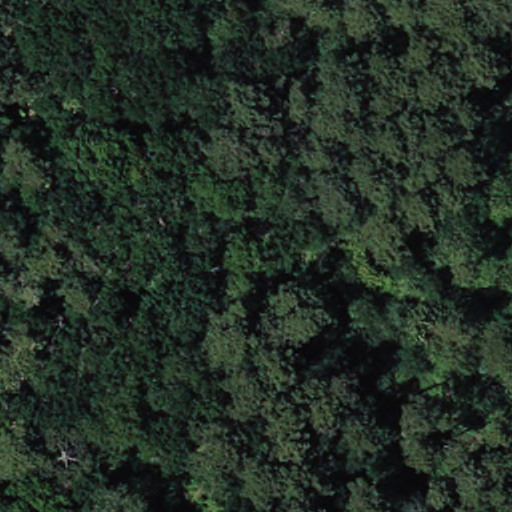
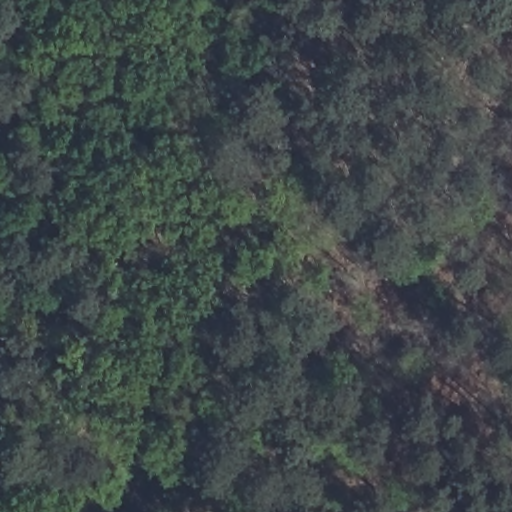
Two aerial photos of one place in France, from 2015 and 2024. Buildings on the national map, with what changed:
[]

